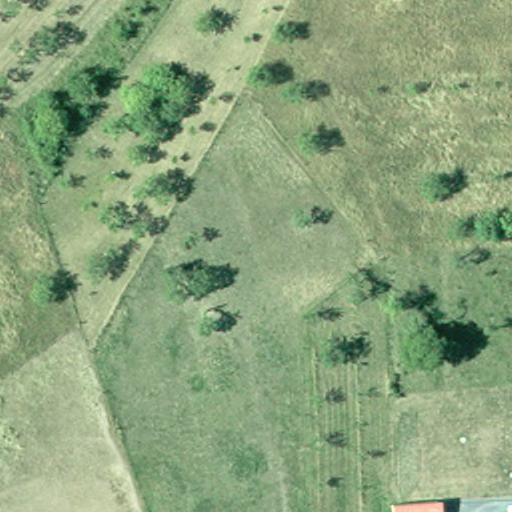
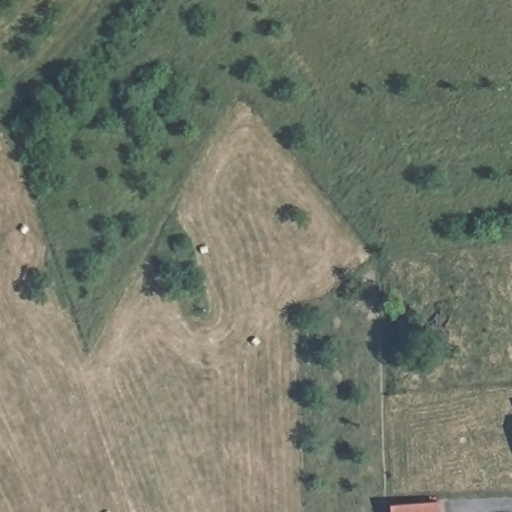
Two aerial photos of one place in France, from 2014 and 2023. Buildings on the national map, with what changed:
unchanged [(444,502),(444,512),(393,512),(393,505),(444,502)]

